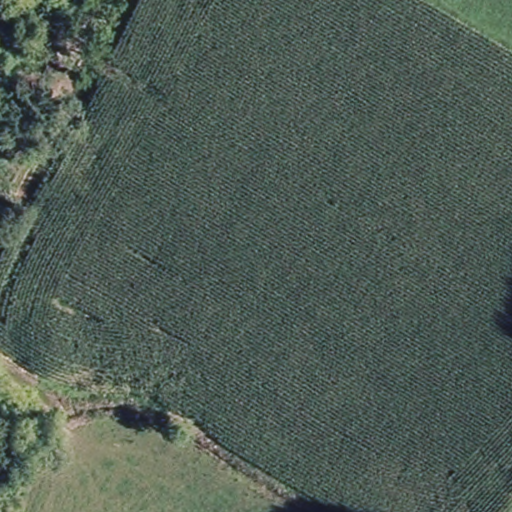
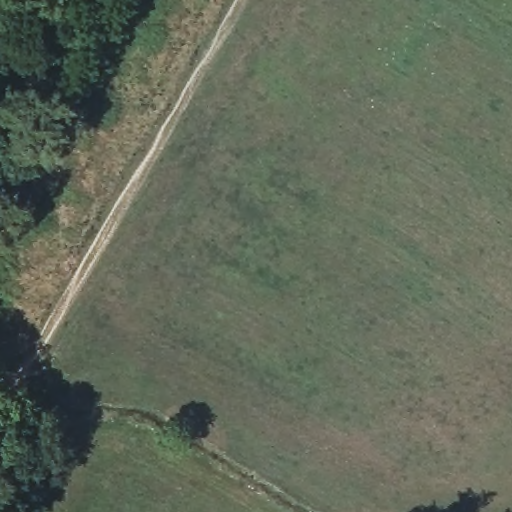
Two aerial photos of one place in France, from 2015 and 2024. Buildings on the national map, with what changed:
[]

